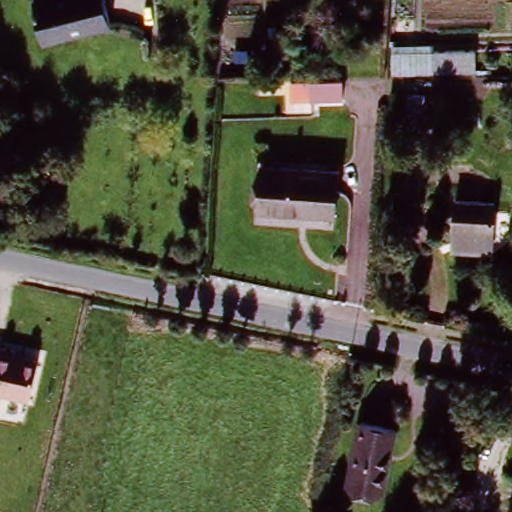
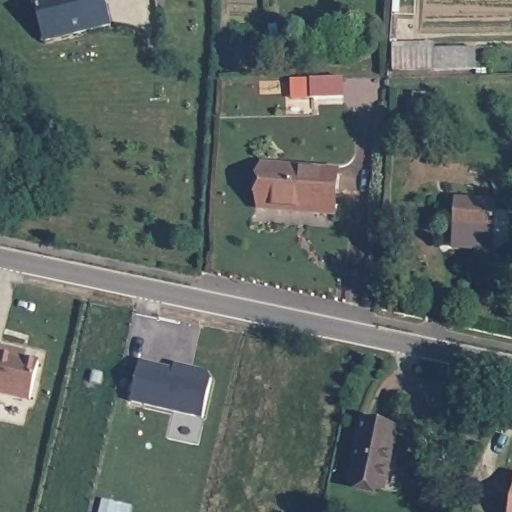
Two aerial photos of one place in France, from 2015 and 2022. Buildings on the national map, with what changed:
unchanged [(34,5),(53,0),(101,0),(108,24),(44,42),(34,5)]
unchanged [(433,71),(391,74),(392,45),(433,45),(433,52),(473,50),(474,67),(433,71)]
unchanged [(293,86),(343,84),(344,104),(294,105),(293,86)]
unchanged [(425,146),(403,145),(409,103),(421,102),(419,117),(428,119),(425,146)]
unchanged [(308,207),(256,204),(258,169),(334,174),(331,215),(308,214),(308,207)]
unchanged [(454,194),(494,196),(491,234),(449,230),(454,194)]
unchanged [(39,356),(29,402),(0,395),(0,348),(39,356)]
new [(173,369),(174,366),(208,373),(211,380),(202,420),(131,405),(140,362),(173,369)]
unchanged [(346,486),(352,452),(358,425),(391,432),(379,492),(346,486)]
unchanged [(512,484),(512,512),(498,512),(504,482),(512,484)]

